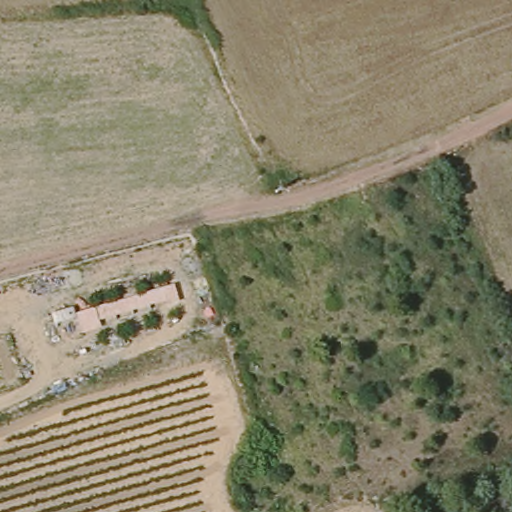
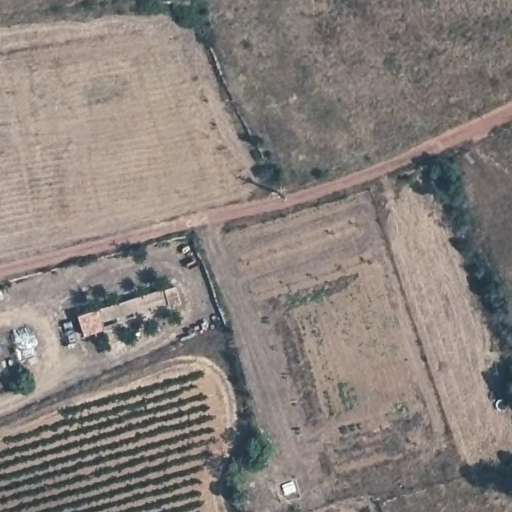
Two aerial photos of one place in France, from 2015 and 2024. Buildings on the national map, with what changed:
unchanged [(173,285),(177,300),(98,321),(101,328),(81,335),(75,315),(173,285)]

